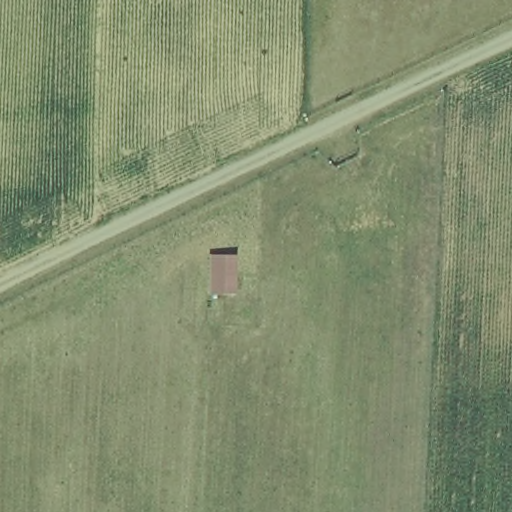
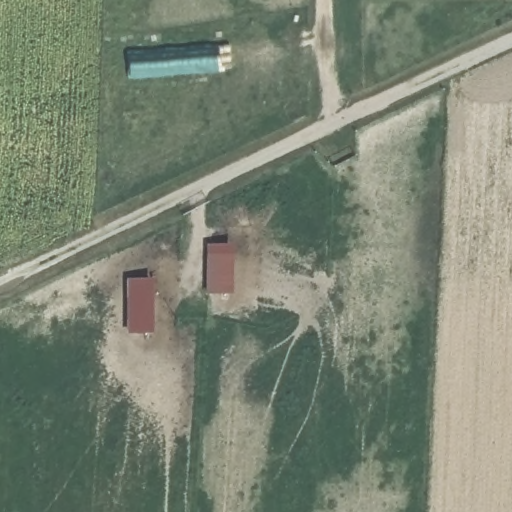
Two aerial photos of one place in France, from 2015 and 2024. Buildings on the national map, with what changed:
unchanged [(224,252),(223,287),(203,287),(204,252),(224,252)]
new [(128,334),(128,280),(155,280),(155,334),(128,334)]

